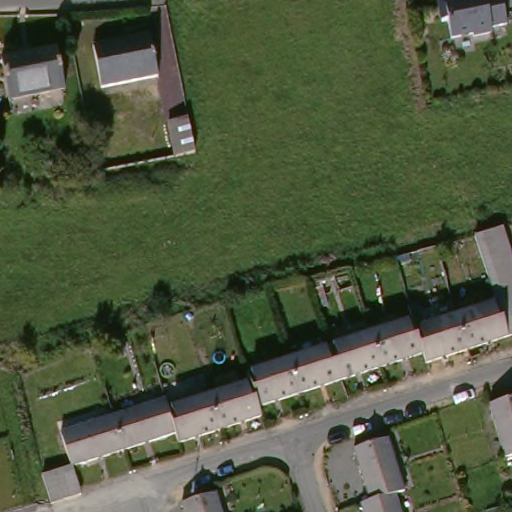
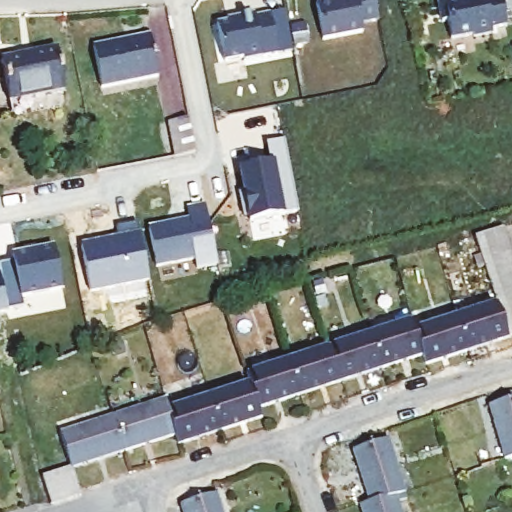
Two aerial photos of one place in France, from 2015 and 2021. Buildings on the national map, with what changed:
new [(337,1),(337,0),(374,0),(378,21),(361,24),(362,32),(323,40),(315,5),(337,1)]
unchanged [(453,36),(450,19),(444,20),(441,7),(446,0),(505,0),(509,22),(494,25),(495,31),(476,34),(475,32),(474,32),(453,36)]
new [(237,20),(236,18),(253,14),(254,17),(269,14),(277,54),(244,61),(243,58),(224,62),(216,24),(237,20)]
unchanged [(159,75),(102,86),(94,44),(151,32),(159,75)]
unchanged [(506,47),(512,45),(512,67),(506,47)]
unchanged [(66,88),(10,99),(2,58),(57,47),(66,88)]
unchanged [(172,155),(165,121),(184,117),(191,151),(172,155)]
new [(190,220),(187,209),(205,205),(218,265),(197,269),(195,259),(157,267),(149,228),(190,220)]
new [(119,240),(116,229),(138,225),(149,282),(90,294),(81,248),(119,240)]
unchanged [(494,306),(493,306),(472,240),(500,231),(512,266),(512,338),(505,340),(494,306)]
new [(11,257),(52,248),(60,289),(20,297),(22,308),(5,311),(0,281),(0,264),(12,262),(11,257)]
new [(6,312),(0,313),(0,281),(5,311),(6,312)]
unchanged [(494,306),(505,340),(464,353),(453,319),(493,306),(494,306)]
unchanged [(422,367),(419,357),(411,332),(453,319),(464,353),(422,367)]
unchanged [(378,370),(367,336),(408,323),(411,332),(419,357),(378,370)]
unchanged [(378,370),(337,384),(326,349),(367,336),(378,370)]
unchanged [(296,397),(285,363),(326,349),(337,384),(296,397)]
unchanged [(246,385),(243,376),(285,363),(296,397),(254,410),(246,385)]
unchanged [(254,410),(257,420),(217,433),(205,399),(246,385),(254,410)]
unchanged [(172,436),(164,412),(205,399),(217,433),(174,446),(171,437),(172,436)]
unchanged [(172,436),(171,437),(120,453),(109,419),(161,402),(164,412),(172,436)]
unchanged [(507,462),(492,409),(512,403),(512,461),(507,462)]
unchanged [(67,470),(75,493),(76,498),(47,507),(37,479),(67,469),(56,436),(109,419),(120,453),(67,470)]
unchanged [(355,453),(389,442),(406,495),(397,498),(372,506),(371,505),(355,453)]
unchanged [(212,496),(217,512),(180,512),(178,507),(212,496)]
unchanged [(371,505),(372,506),(397,498),(401,512),(363,512),(362,508),(371,505)]

